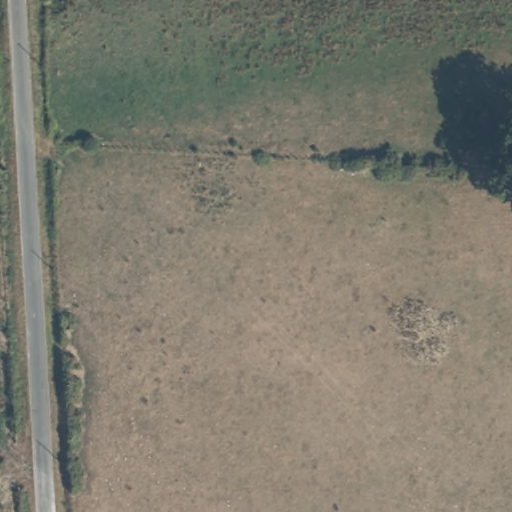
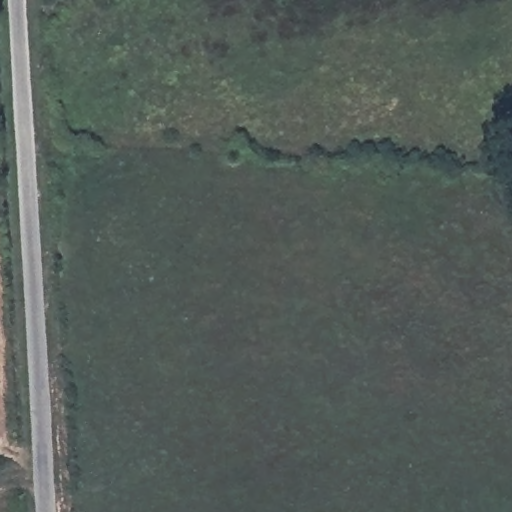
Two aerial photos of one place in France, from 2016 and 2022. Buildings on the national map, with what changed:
[]

